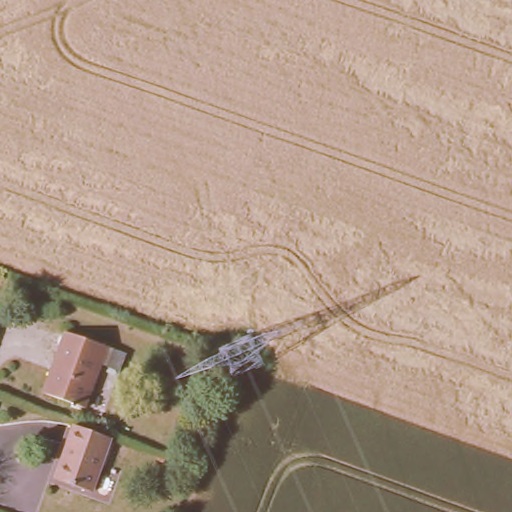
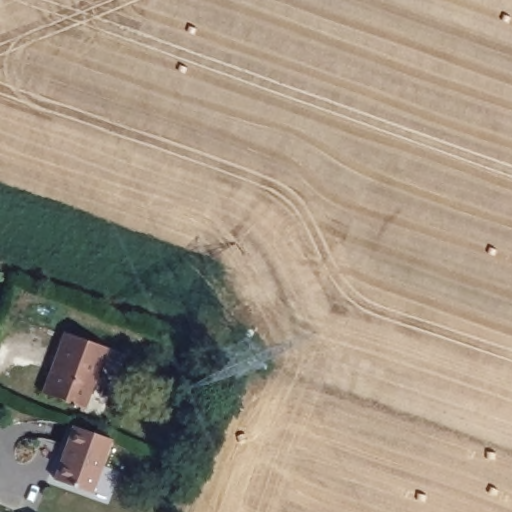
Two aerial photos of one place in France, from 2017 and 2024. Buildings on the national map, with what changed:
unchanged [(105,352),(83,411),(40,397),(63,336),(105,352)]
unchanged [(115,440),(98,493),(57,480),(73,427),(115,440)]

